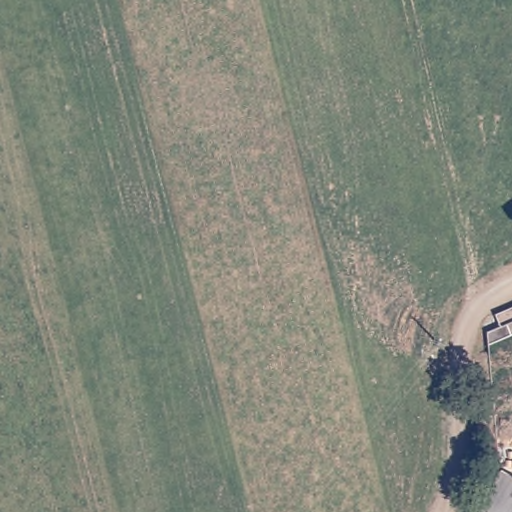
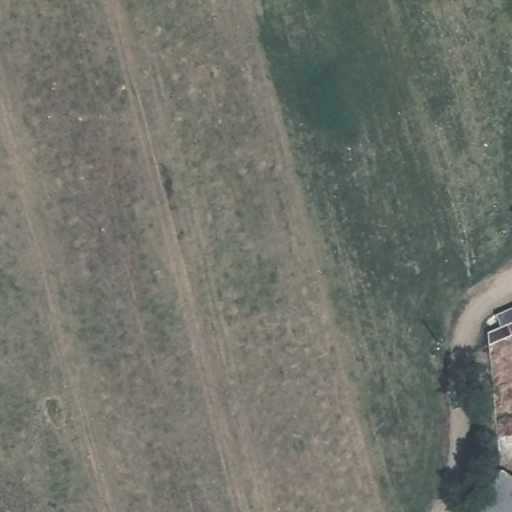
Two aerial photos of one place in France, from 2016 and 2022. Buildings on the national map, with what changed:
unchanged [(501,473),(512,480),(512,512),(476,512),(501,473)]

